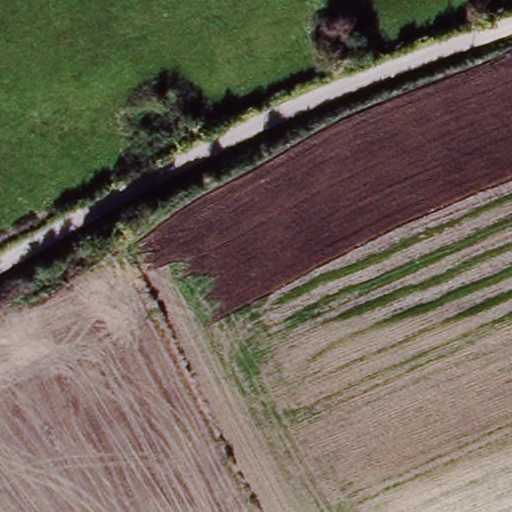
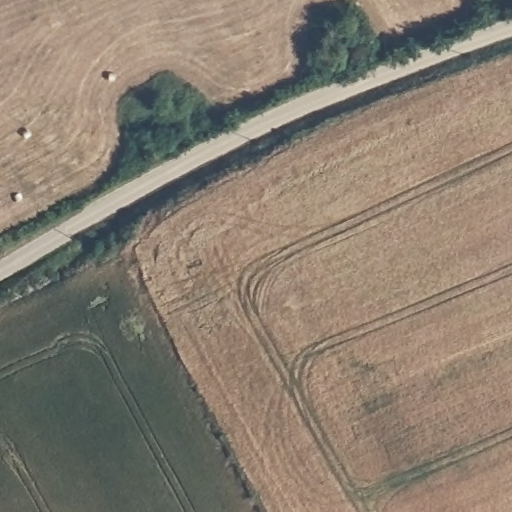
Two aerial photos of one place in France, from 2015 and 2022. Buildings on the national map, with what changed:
[]

